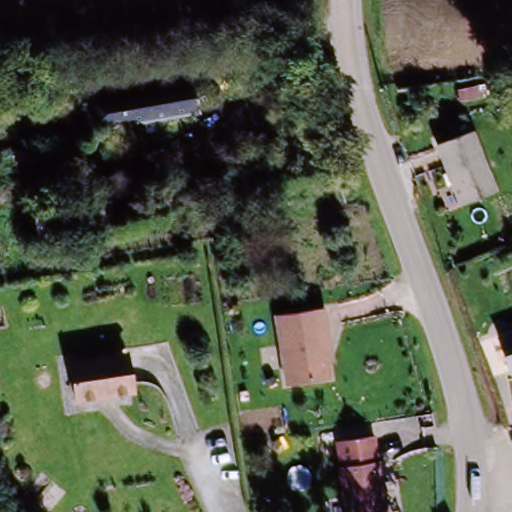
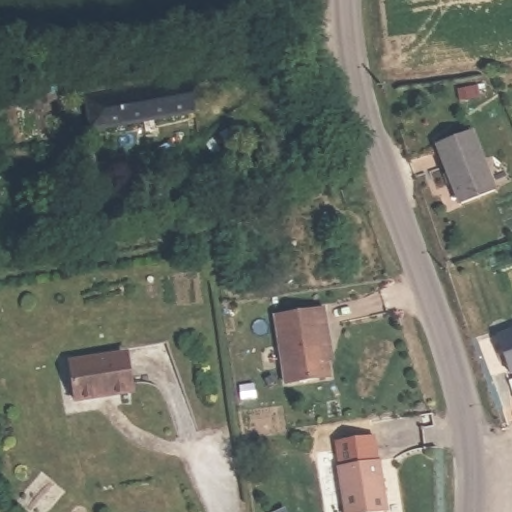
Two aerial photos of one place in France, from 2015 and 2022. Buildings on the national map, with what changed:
unchanged [(91,135),(84,90),(183,79),(194,119),(91,135)]
unchanged [(435,141),(469,127),(496,195),(462,208),(435,141)]
unchanged [(271,316),(326,310),(329,376),(280,386),(271,316)]
unchanged [(512,337),(512,373),(500,341),(512,337)]
unchanged [(123,392),(92,396),(93,400),(68,403),(63,364),(118,357),(123,392)]
unchanged [(366,437),(367,462),(379,463),(383,512),(339,512),(335,440),(366,437)]

